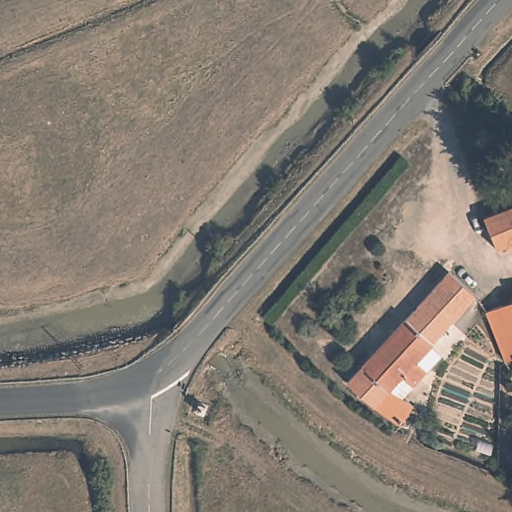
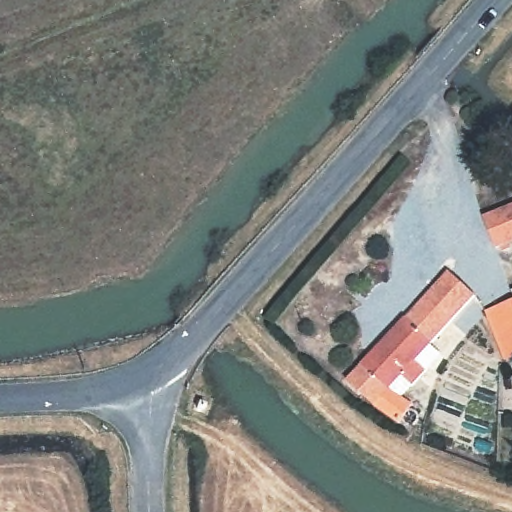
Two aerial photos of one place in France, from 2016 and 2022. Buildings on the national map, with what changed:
unchanged [(512,213),(512,247),(498,252),(486,224),(512,213)]
unchanged [(422,355),(433,366),(408,394),(395,384),(388,392),(414,415),(405,428),(369,402),(350,383),(443,282),(467,306),(422,355)]
unchanged [(512,290),(512,298),(509,291),(512,290)]
unchanged [(487,310),(512,300),(512,356),(507,358),(487,310)]

